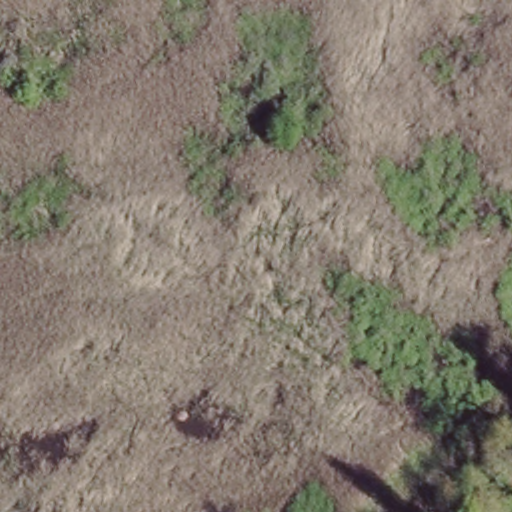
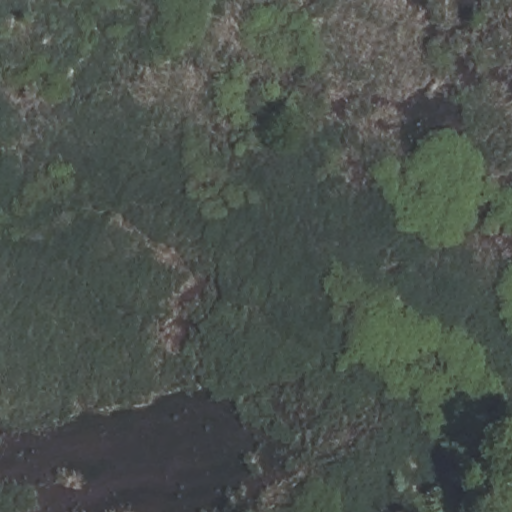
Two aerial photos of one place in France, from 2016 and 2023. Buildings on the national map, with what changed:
[]

